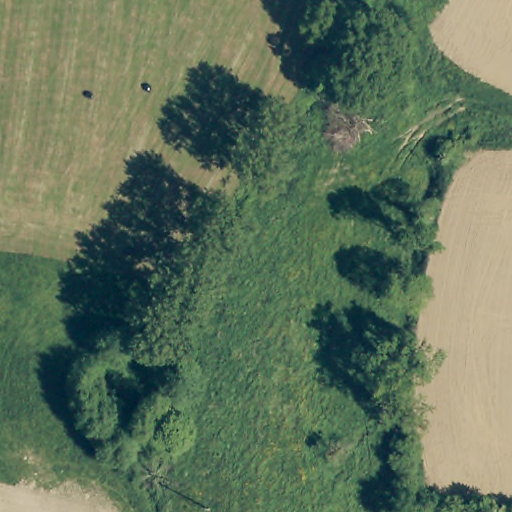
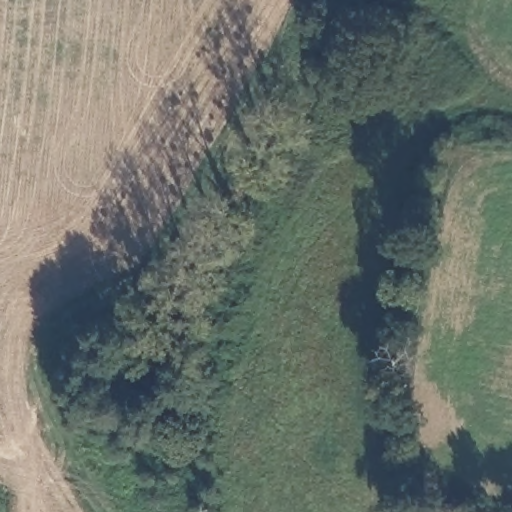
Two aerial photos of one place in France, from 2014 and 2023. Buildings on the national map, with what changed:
[]

